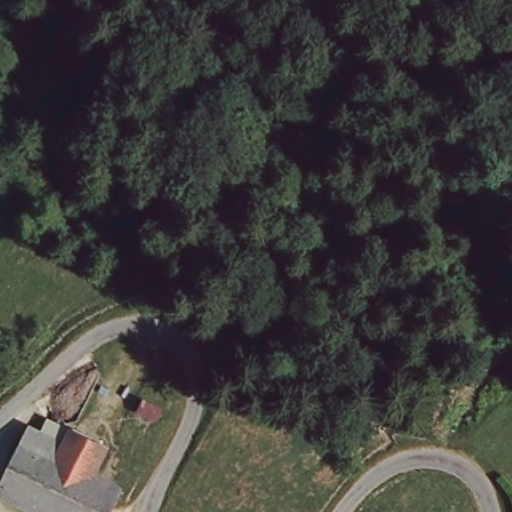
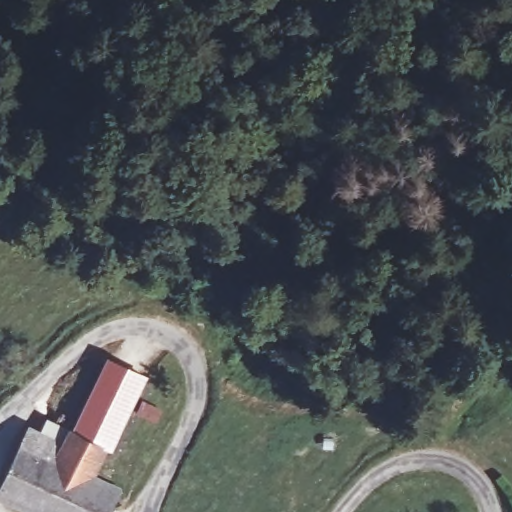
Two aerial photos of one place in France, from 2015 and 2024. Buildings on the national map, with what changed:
new [(62,425),(72,428),(106,356),(147,376),(115,448),(110,446),(107,451),(75,433),(65,447),(40,432),(35,431),(46,418),(62,425)]
unchanged [(1,490),(35,431),(65,447),(75,433),(107,451),(93,478),(120,493),(109,512),(40,512),(1,490)]

